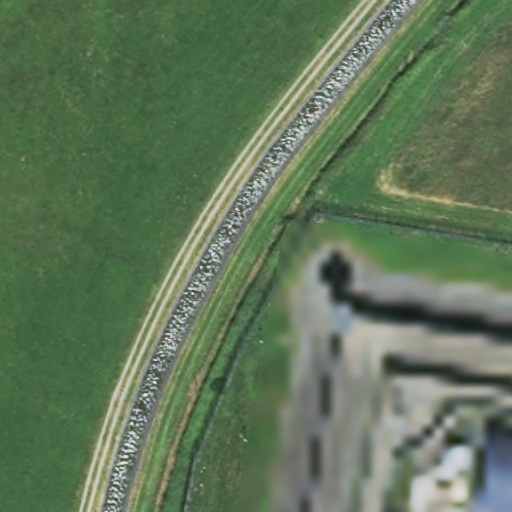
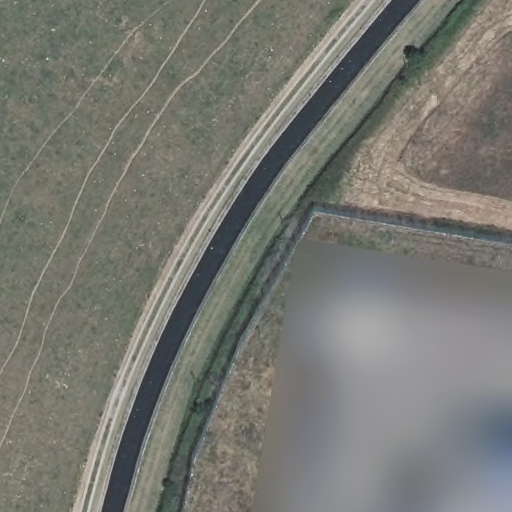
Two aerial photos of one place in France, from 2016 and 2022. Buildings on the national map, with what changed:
unchanged [(512,421),(512,512),(475,512),(490,417),(512,421)]

